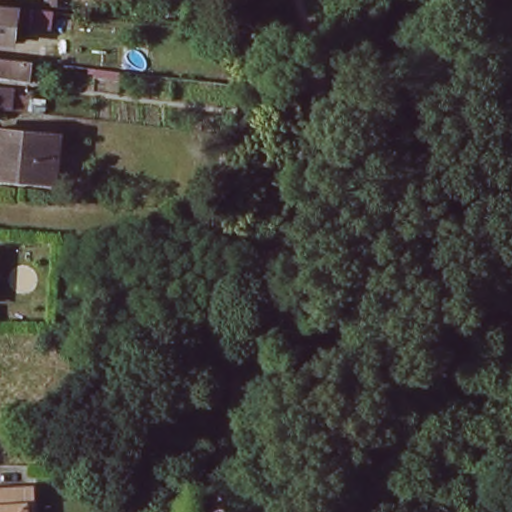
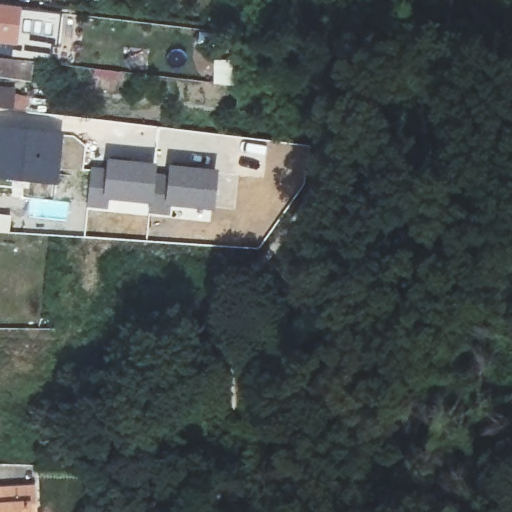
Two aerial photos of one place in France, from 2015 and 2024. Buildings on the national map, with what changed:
demolished [(8,1),(0,1),(0,0),(8,0),(8,1)]
unchanged [(51,30),(19,27),(17,47),(0,45),(0,6),(53,12),(51,30)]
new [(212,58),(235,59),(234,86),(212,85),(212,58)]
unchanged [(28,81),(0,78),(0,60),(30,63),(28,81)]
unchanged [(6,92),(4,110),(0,110),(0,91),(6,92)]
unchanged [(60,137),(54,180),(13,174),(12,178),(0,177),(0,130),(60,137)]
new [(89,165),(105,167),(106,156),(157,163),(156,168),(167,169),(167,163),(219,169),(214,210),(171,206),(170,216),(144,214),(144,207),(110,204),(110,211),(85,208),(89,165)]
unchanged [(35,512),(0,512),(0,485),(35,485),(35,512)]

